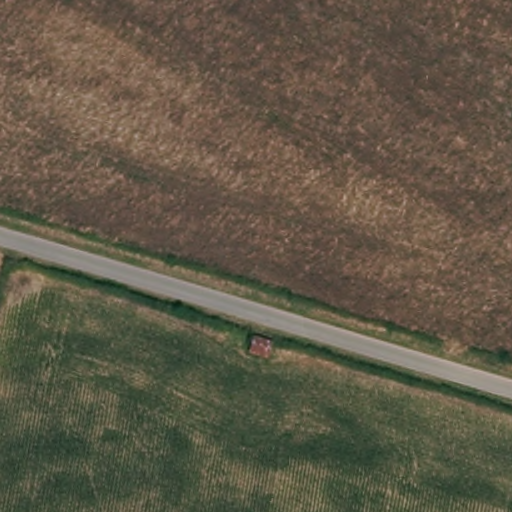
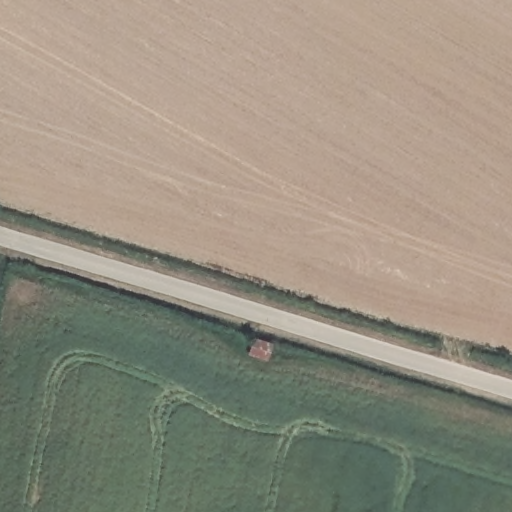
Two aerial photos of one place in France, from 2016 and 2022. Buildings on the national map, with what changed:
unchanged [(277,328),(270,353),(252,348),(259,323),(277,328)]

